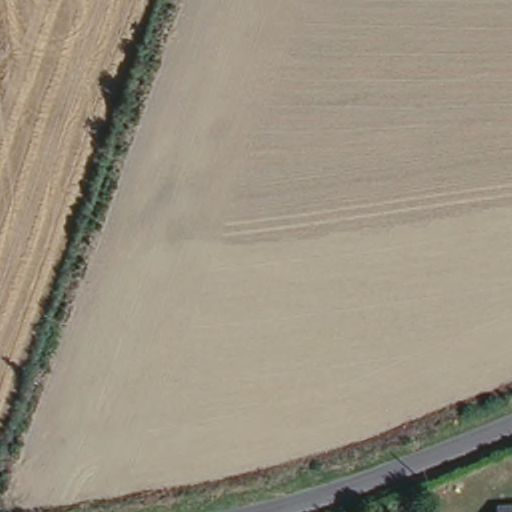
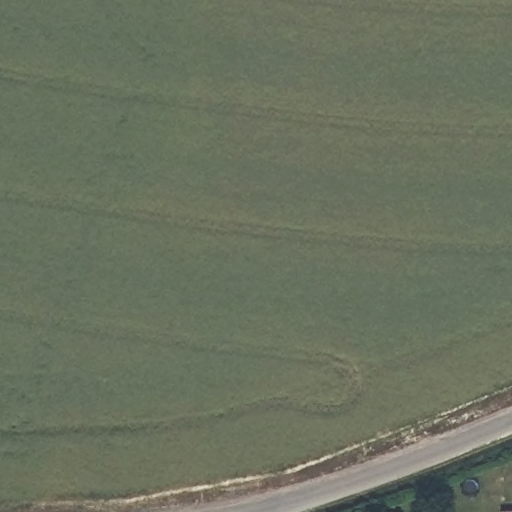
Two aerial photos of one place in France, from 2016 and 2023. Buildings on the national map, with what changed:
unchanged [(500,512),(500,509),(512,508),(512,512),(500,512)]

